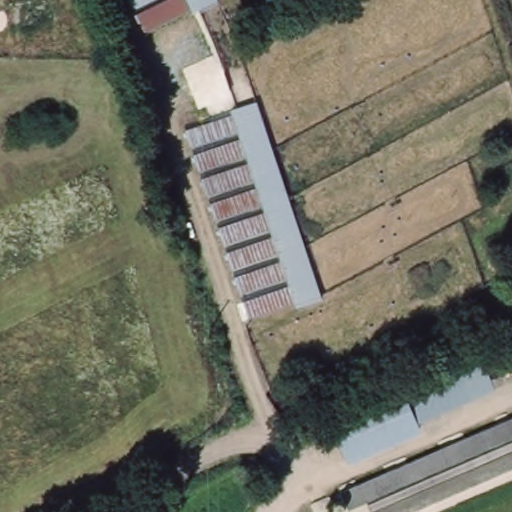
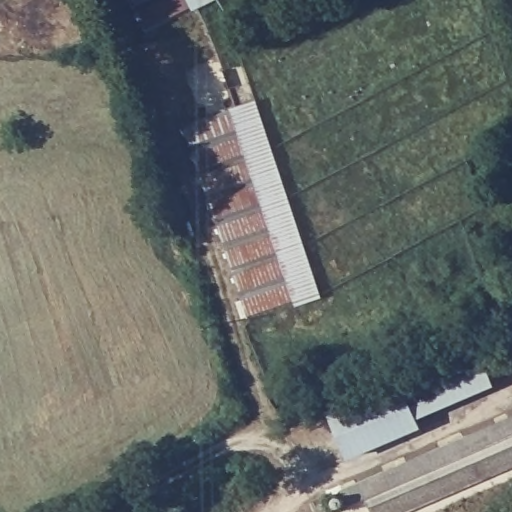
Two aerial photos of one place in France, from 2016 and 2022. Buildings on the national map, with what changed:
unchanged [(192,12),(190,7),(143,31),(128,0),(218,0),(219,1),(192,12)]
unchanged [(229,113),(227,109),(255,100),(322,301),(291,309),(290,306),(247,321),(184,130),(229,113)]
unchanged [(331,416),(477,348),(497,383),(422,419),(424,424),(353,457),(331,416)]
unchanged [(512,464),(402,512),(374,512),(367,497),(349,505),(343,491),(512,417),(512,464)]

